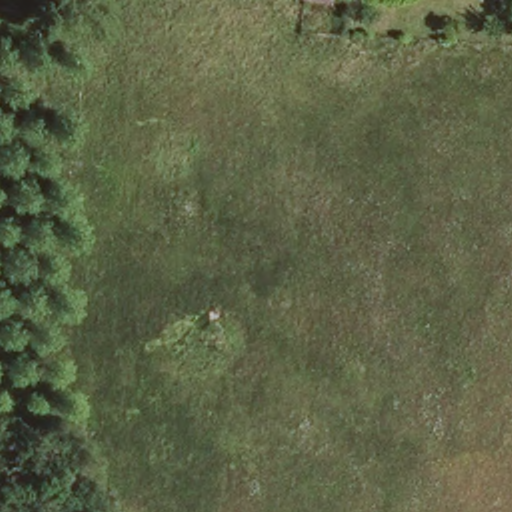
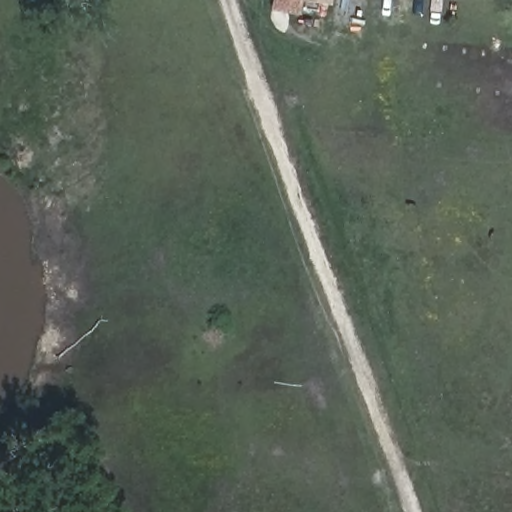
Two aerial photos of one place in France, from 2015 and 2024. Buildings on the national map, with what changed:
new [(272,0),(302,0),(299,13),(271,8),(272,0)]

